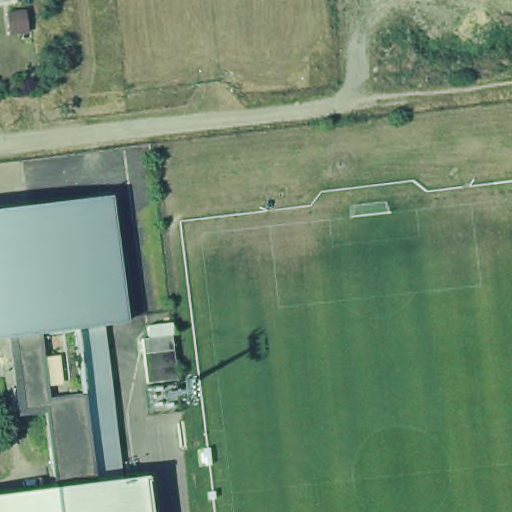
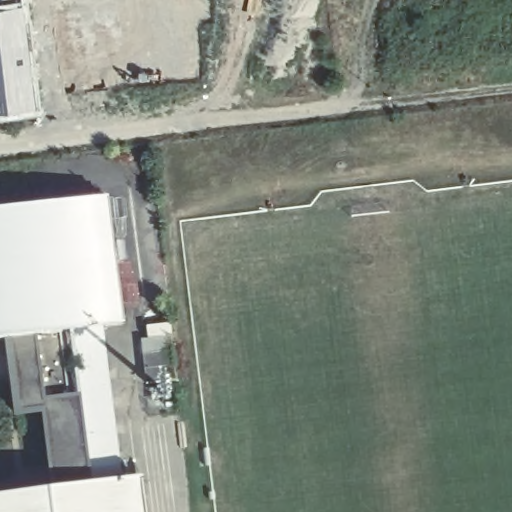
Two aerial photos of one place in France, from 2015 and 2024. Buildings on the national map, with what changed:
new [(39,111),(0,115),(0,0),(25,0),(39,111)]
unchanged [(56,491),(46,410),(16,414),(12,390),(18,389),(12,340),(0,341),(0,212),(107,199),(124,326),(104,328),(124,482),(56,491)]
unchanged [(148,385),(146,370),(144,355),(174,351),(175,366),(177,381),(148,385)]
unchanged [(56,491),(124,482),(144,480),(147,512),(0,512),(0,497),(56,491)]

